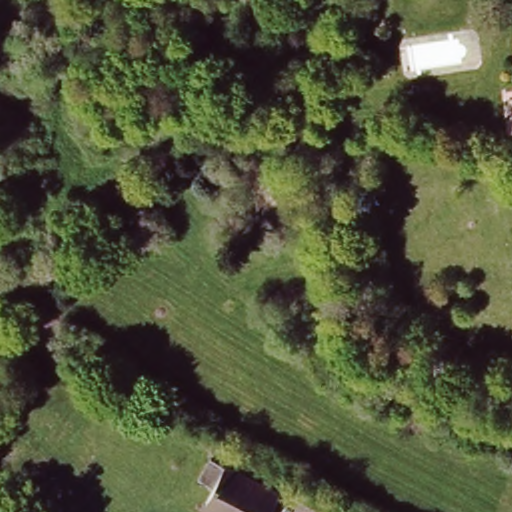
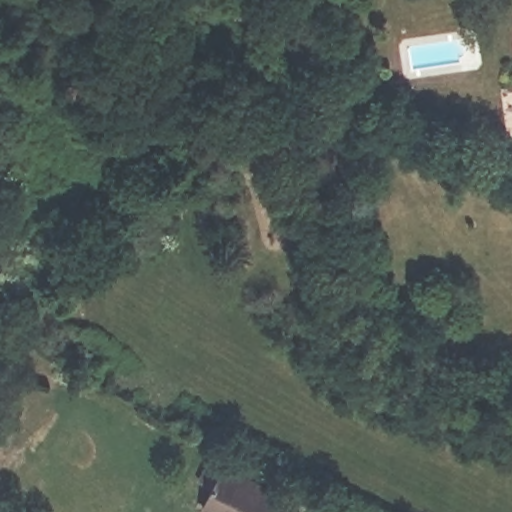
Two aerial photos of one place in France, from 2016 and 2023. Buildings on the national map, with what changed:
unchanged [(228,467),(281,496),(274,512),(203,512),(228,467)]

